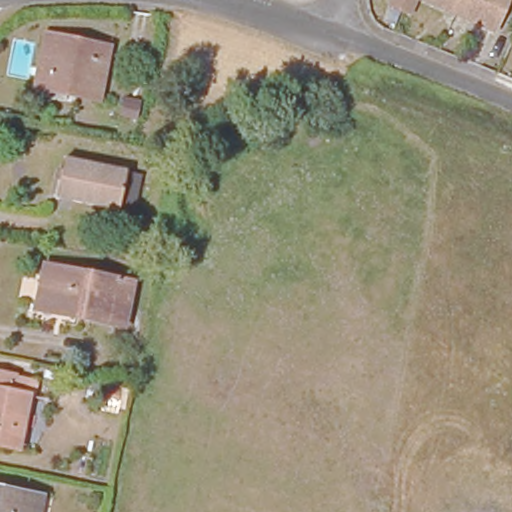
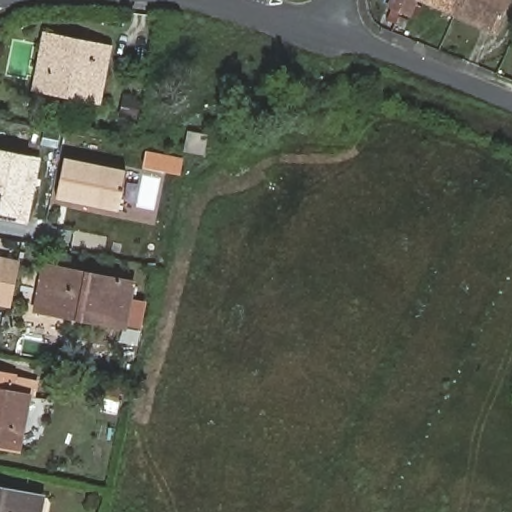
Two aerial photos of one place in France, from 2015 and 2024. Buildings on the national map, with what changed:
unchanged [(391,10),(395,0),(510,0),(494,36),(417,2),(409,18),(391,10)]
unchanged [(40,44),(105,57),(94,111),(70,106),(71,100),(40,94),(47,59),(37,57),(40,44)]
unchanged [(212,140),(208,158),(190,155),(194,137),(212,140)]
new [(1,194),(0,193),(0,149),(31,155),(41,157),(28,224),(0,218),(0,199),(1,194)]
unchanged [(125,218),(109,215),(46,202),(55,163),(116,176),(133,179),(125,218)]
new [(19,262),(9,306),(0,304),(0,258),(19,262)]
unchanged [(124,332),(76,322),(77,316),(37,308),(44,271),(133,288),(124,332)]
unchanged [(29,400),(19,454),(0,450),(0,378),(16,381),(13,397),(29,400)]
unchanged [(117,402),(100,399),(103,381),(121,385),(117,402)]
unchanged [(0,512),(0,493),(42,502),(40,512),(0,512)]

